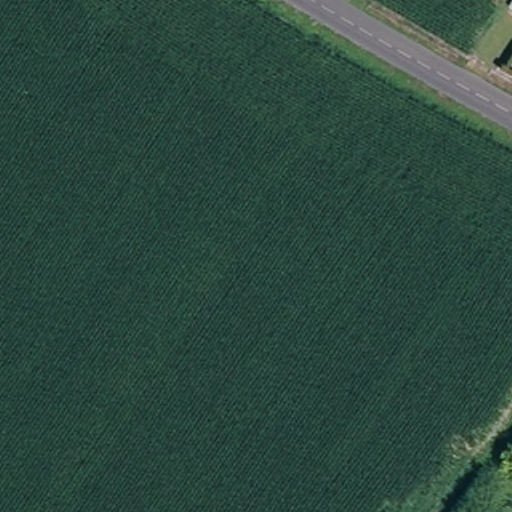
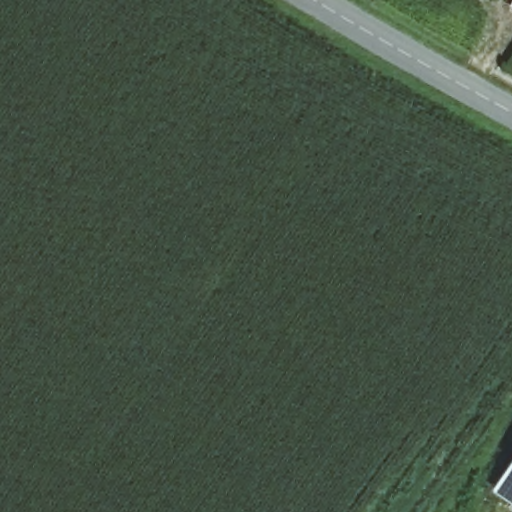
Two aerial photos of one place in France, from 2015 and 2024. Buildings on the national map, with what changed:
new [(512,462),(512,503),(493,490),(512,462)]

